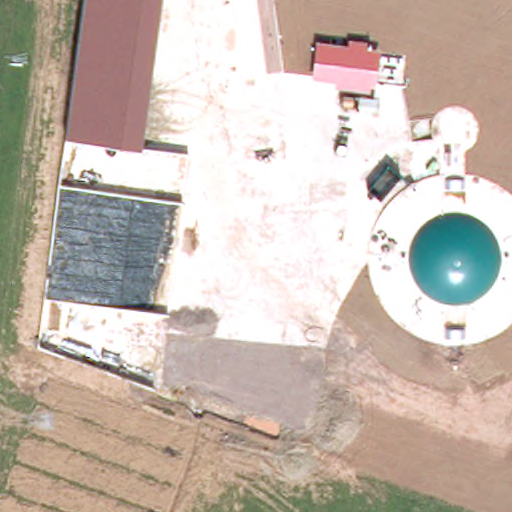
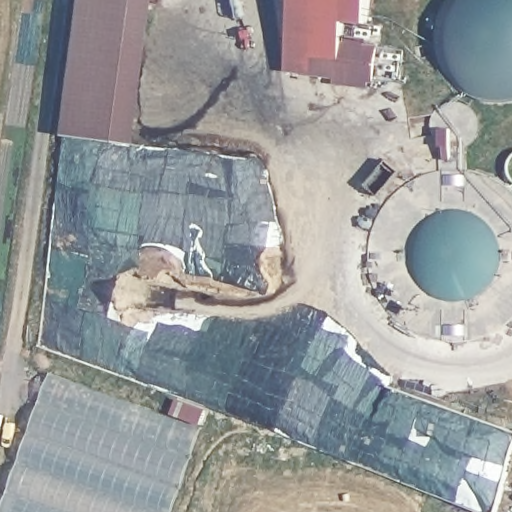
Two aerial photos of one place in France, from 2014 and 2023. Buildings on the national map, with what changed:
unchanged [(139,147),(63,137),(82,0),(159,0),(139,147)]
new [(346,42),(315,38),(311,77),(288,75),(296,0),(374,0),(371,27),(348,25),(347,36),(346,42)]
unchanged [(374,84),(369,83),(369,90),(334,87),(335,79),(311,77),(315,38),(346,42),(347,36),(366,39),(364,45),(378,48),(374,84)]
new [(203,427),(173,512),(1,512),(49,373),(203,427)]

